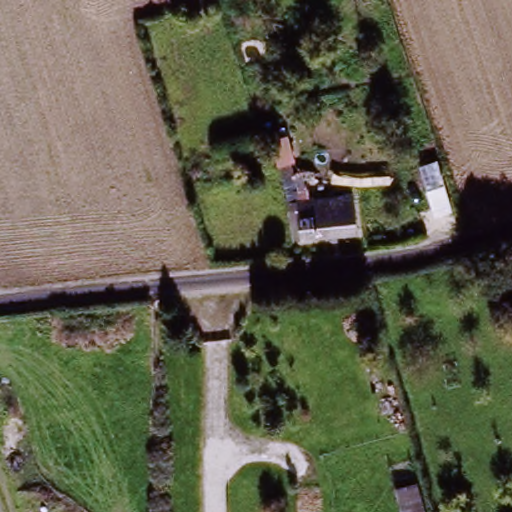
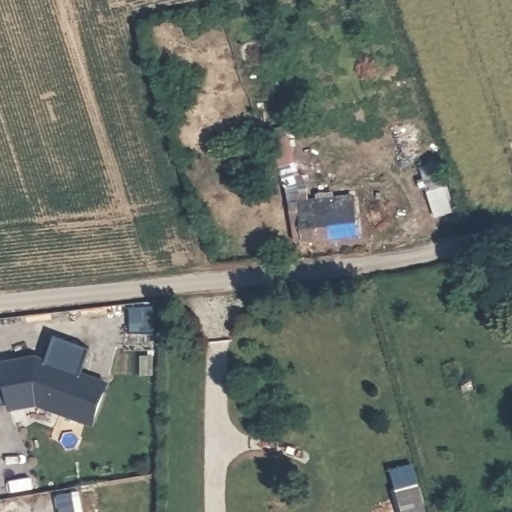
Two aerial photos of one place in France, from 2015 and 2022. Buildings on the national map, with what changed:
unchanged [(281,175),(290,172),(294,185),(285,188),(281,175)]
unchanged [(334,211),(331,194),(353,190),(362,234),(303,245),(292,202),(312,197),(317,215),(334,211)]
new [(0,369),(0,365),(30,360),(73,376),(74,375),(106,386),(90,427),(58,415),(60,411),(35,402),(0,407),(0,369)]

